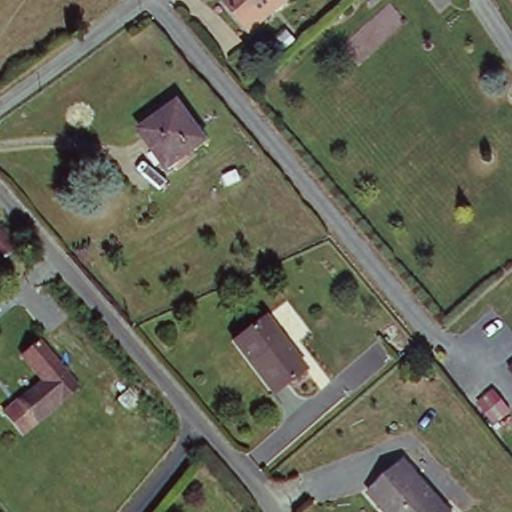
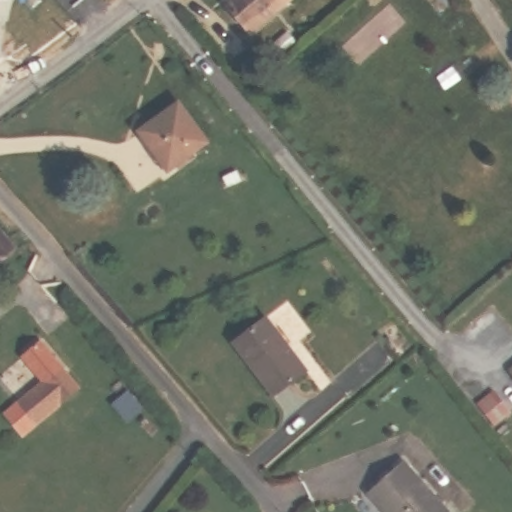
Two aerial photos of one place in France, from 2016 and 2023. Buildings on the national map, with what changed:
unchanged [(292,0),(293,2),(250,37),(225,4),(230,0),(292,0)]
unchanged [(179,107),(207,143),(171,171),(143,135),(179,107)]
unchanged [(19,251),(5,262),(0,256),(0,230),(19,251)]
unchanged [(268,322),(312,375),(280,402),(237,347),(268,322)]
unchanged [(39,382),(18,358),(36,344),(77,391),(24,434),(1,412),(39,382)]
unchanged [(512,362),(512,379),(504,368),(512,362)]
unchanged [(405,461),(449,512),(386,512),(370,493),(405,461)]

